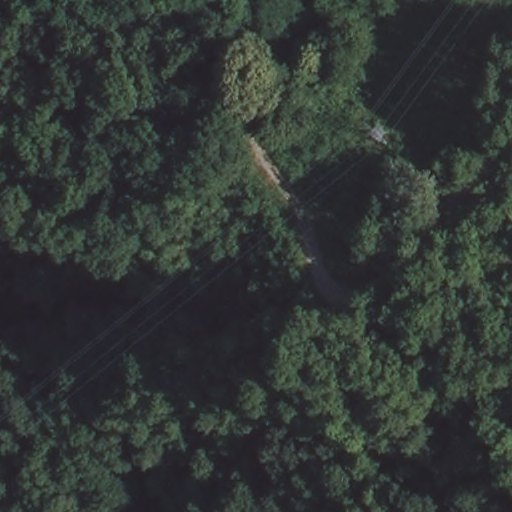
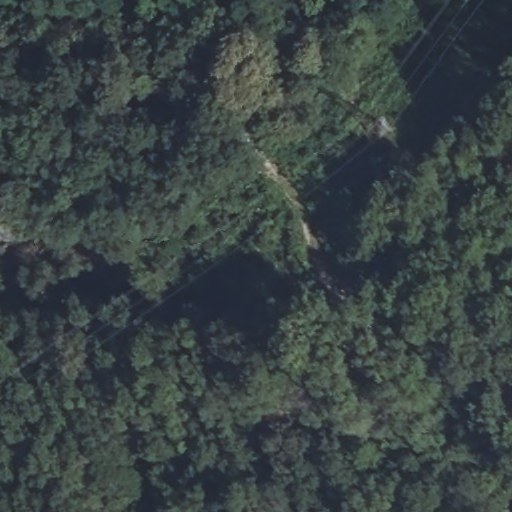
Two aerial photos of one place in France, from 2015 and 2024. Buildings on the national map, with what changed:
[]

